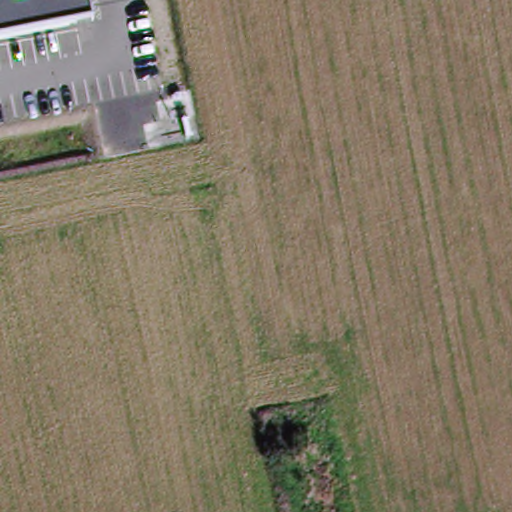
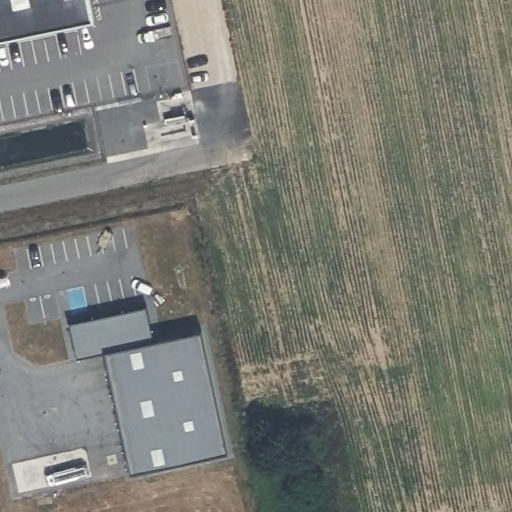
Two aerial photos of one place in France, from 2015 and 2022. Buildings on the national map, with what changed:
unchanged [(93,22),(0,39),(0,0),(88,0),(93,22)]
new [(155,340),(202,328),(227,451),(130,472),(102,350),(76,356),(68,321),(145,303),(155,340)]

